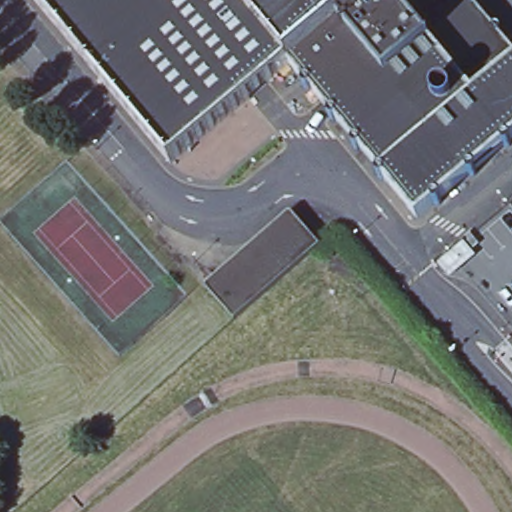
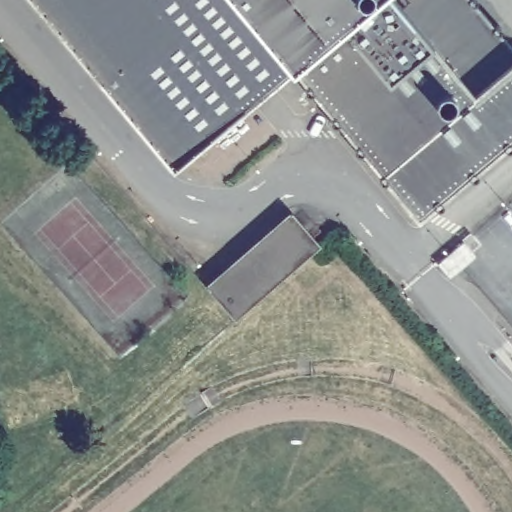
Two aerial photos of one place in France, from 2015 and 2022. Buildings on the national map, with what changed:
unchanged [(173,165),(36,0),(239,0),(293,64),(173,165)]
unchanged [(293,64),(239,0),(369,0),(293,64)]
unchanged [(420,216),(293,64),(369,0),(477,0),(512,42),(512,139),(420,216)]
unchanged [(233,319),(204,286),(205,286),(291,211),(319,244),(233,319)]

